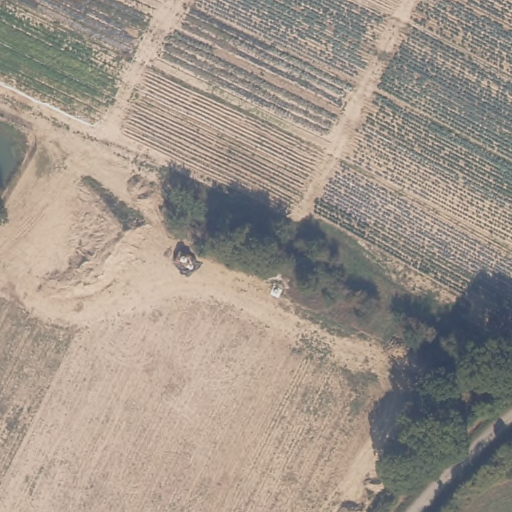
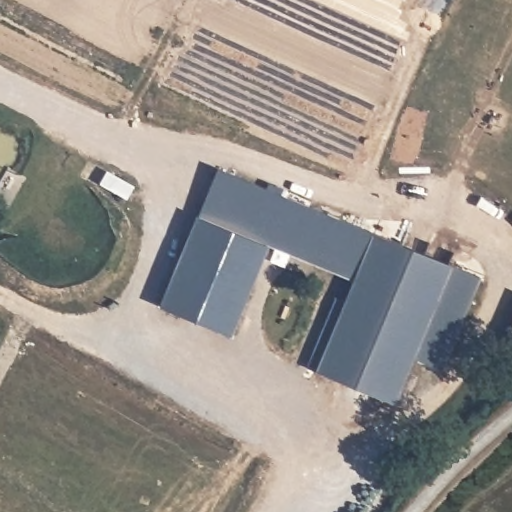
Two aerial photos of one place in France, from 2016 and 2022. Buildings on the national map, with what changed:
new [(483,276),(446,370),(416,359),(398,403),(318,372),(357,277),(272,244),(233,335),(162,305),(201,215),(219,167),(455,265),(483,276)]

